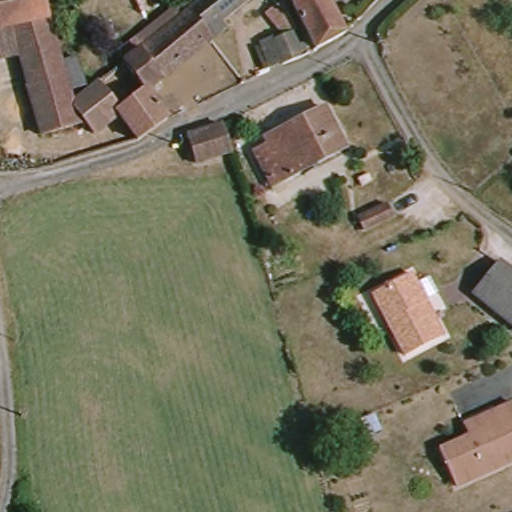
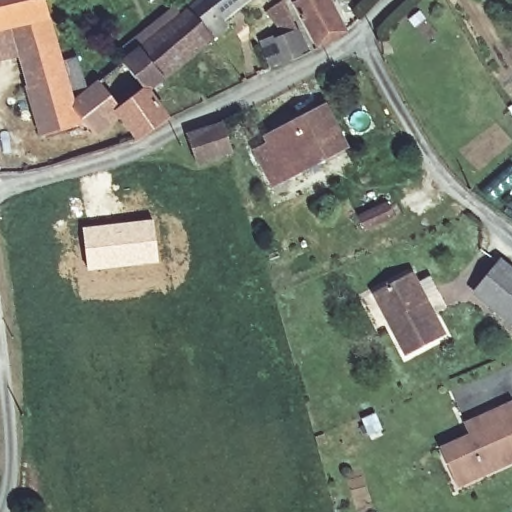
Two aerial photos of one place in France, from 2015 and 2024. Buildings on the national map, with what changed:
unchanged [(9,30),(6,30),(0,32),(0,0),(36,0),(42,20),(9,30)]
unchanged [(171,23),(161,0),(182,0),(186,11),(199,0),(275,0),(257,14),(248,4),(205,39),(208,46),(145,92),(121,62),(171,23)]
unchanged [(331,0),(346,34),(314,53),(288,0),(331,0)]
unchanged [(274,55),(284,46),(266,22),(286,8),(314,53),(283,69),(274,55)]
unchanged [(98,134),(89,122),(46,134),(29,85),(9,30),(42,20),(58,61),(75,55),(84,82),(65,87),(69,100),(105,77),(121,62),(145,92),(167,123),(138,137),(125,119),(98,134)]
unchanged [(14,59),(0,62),(0,32),(6,30),(14,59)]
unchanged [(269,152),(261,141),(320,109),(344,150),(269,194),(251,164),(269,152)]
unchanged [(187,137),(223,127),(233,156),(196,171),(187,137)]
unchanged [(393,182),(398,197),(366,205),(361,191),(393,182)]
new [(391,202),(396,217),(364,226),(359,212),(391,202)]
new [(154,219),(159,262),(87,271),(82,227),(154,219)]
unchanged [(512,274),(512,329),(475,291),(503,265),(512,274)]
unchanged [(430,305),(421,309),(435,344),(399,357),(373,291),(416,275),(430,305)]
unchanged [(451,491),(440,458),(437,448),(502,427),(498,418),(512,413),(512,472),(451,491)]
unchanged [(380,512),(350,512),(348,506),(374,497),(380,512)]

